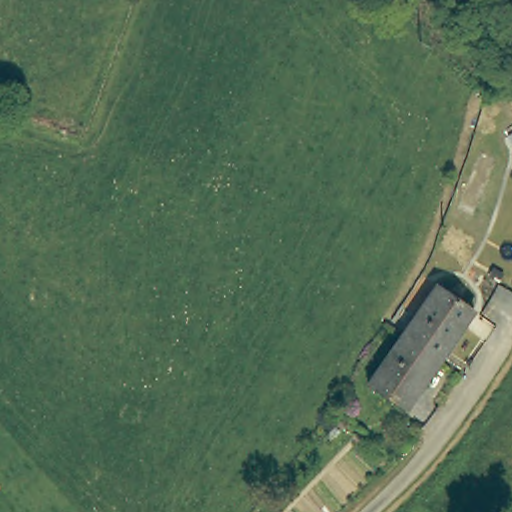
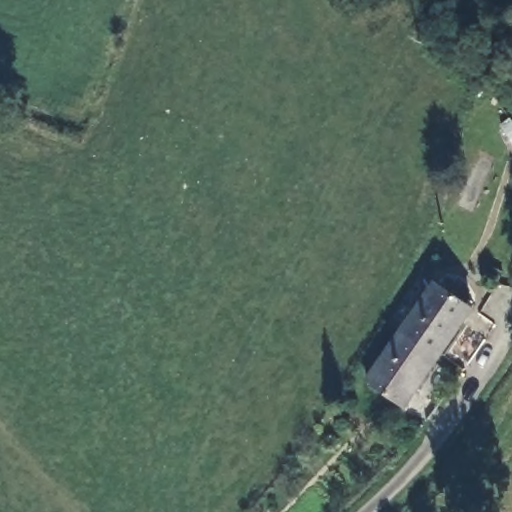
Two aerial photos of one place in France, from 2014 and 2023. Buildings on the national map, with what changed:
unchanged [(403,330),(439,281),(477,308),(440,357),(403,330)]
unchanged [(440,357),(405,404),(368,377),(403,330),(440,357)]

